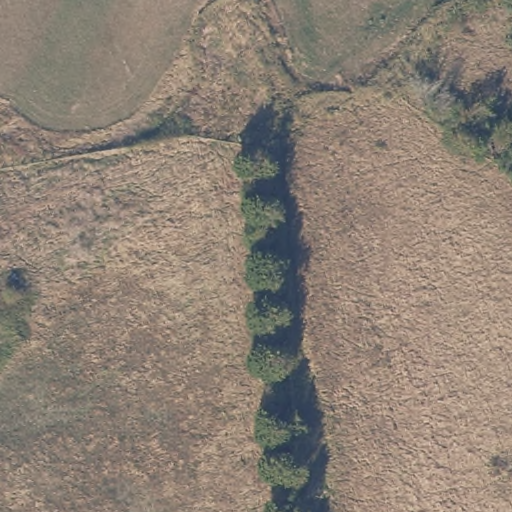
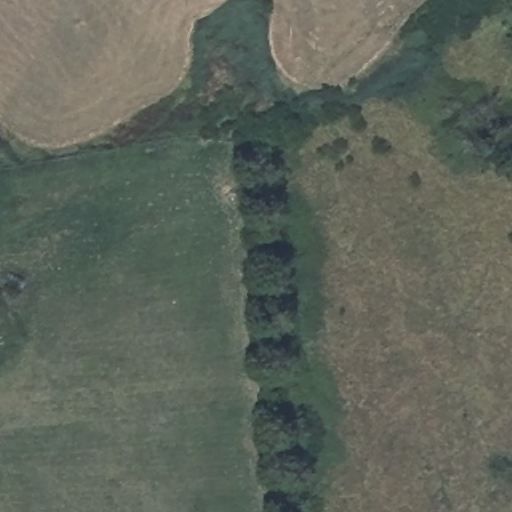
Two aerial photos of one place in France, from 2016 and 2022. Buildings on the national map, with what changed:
[]

